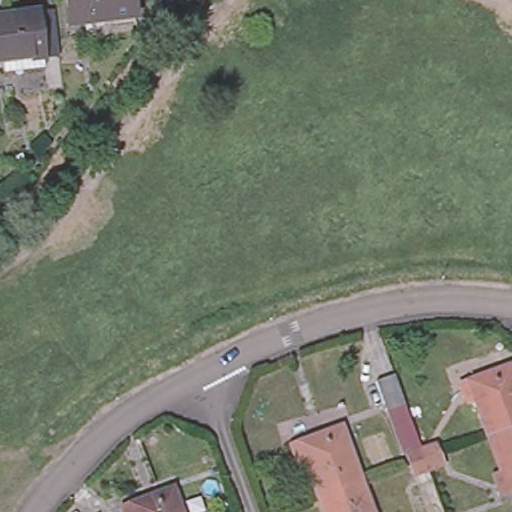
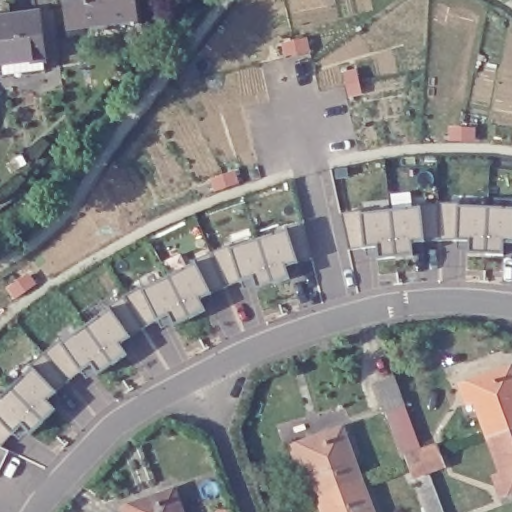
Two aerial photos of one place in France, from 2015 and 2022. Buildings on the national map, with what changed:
unchanged [(69,28),(66,0),(130,0),(132,21),(69,28)]
unchanged [(45,60),(0,66),(0,20),(39,15),(45,60)]
new [(340,214),(360,211),(360,214),(418,207),(457,205),(512,206),(512,250),(502,250),(502,256),(468,254),(469,248),(456,249),(456,239),(424,240),(423,250),(410,252),(411,255),(379,258),(377,253),(365,256),(364,246),(347,249),(340,214)]
new [(285,229),(284,226),(304,221),(313,257),(297,261),(285,266),(290,277),(272,282),(257,237),(285,229)]
new [(229,244),(230,247),(257,237),(272,282),(255,288),(252,277),(239,280),(225,286),(210,252),(229,244)]
new [(194,262),(192,259),(210,252),(225,286),(211,292),(200,298),(205,310),(190,317),(168,275),(194,262)]
new [(141,286),(142,288),(168,275),(190,317),(174,326),(168,315),(157,321),(157,320),(144,328),(124,296),(141,286)]
new [(109,308),(107,306),(124,296),(144,328),(130,336),(130,337),(120,343),(127,353),(113,364),(85,325),(109,308)]
new [(60,340),(62,342),(85,325),(113,364),(98,374),(91,365),(81,372),(80,371),(69,381),(45,352),(60,340)]
new [(32,367),(29,365),(45,352),(69,381),(57,391),(57,392),(48,400),(57,409),(44,422),(11,387),(32,367)]
unchanged [(503,432),(487,437),(475,402),(467,405),(460,385),(510,366),(512,370),(512,429),(503,432)]
unchanged [(405,405),(386,412),(376,382),(395,376),(405,405)]
new [(44,422),(31,434),(22,425),(13,434),(13,433),(2,446),(10,450),(0,470),(0,398),(11,387),(44,422)]
unchanged [(335,496),(324,501),(310,463),(302,466),(295,446),(347,427),(367,484),(335,496)]
unchanged [(503,432),(512,429),(512,492),(500,496),(494,477),(501,475),(487,437),(503,432)]
unchanged [(429,471),(414,477),(410,467),(405,456),(421,450),(437,445),(440,455),(444,466),(429,471)]
unchanged [(377,512),(328,512),(324,501),(335,496),(367,484),(377,512)]
unchanged [(122,507),(174,489),(182,512),(124,512),(122,507)]

